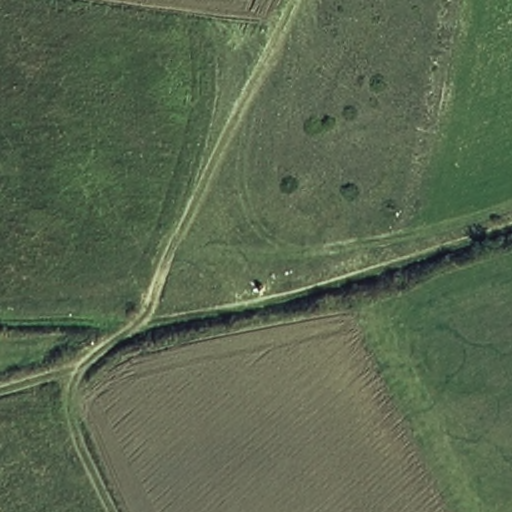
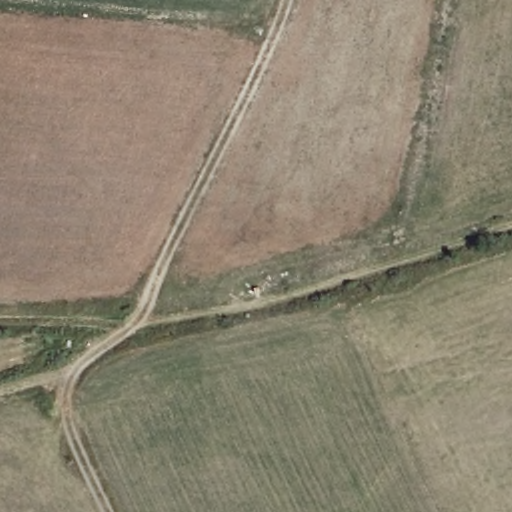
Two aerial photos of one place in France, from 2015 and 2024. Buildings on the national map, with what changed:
unchanged [(262,280),(264,295),(247,297),(245,283),(262,280)]

